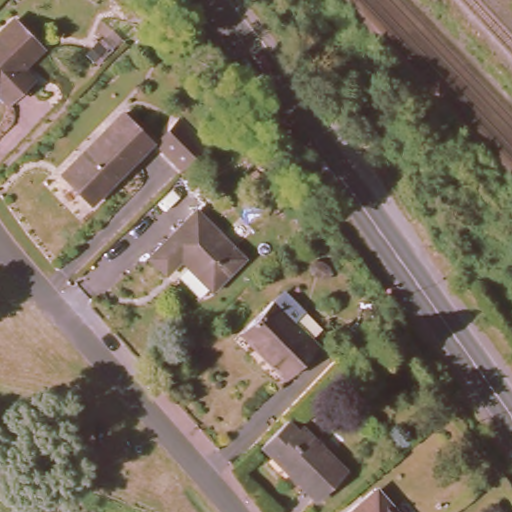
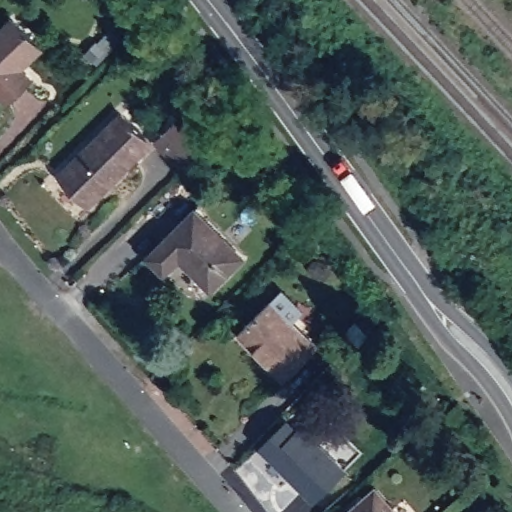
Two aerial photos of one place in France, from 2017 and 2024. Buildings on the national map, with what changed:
unchanged [(29,72),(9,92),(0,83),(0,23),(12,11),(40,40),(18,60),(29,72)]
unchanged [(91,205),(62,174),(124,113),(154,143),(91,205)]
unchanged [(160,140),(183,117),(210,146),(186,169),(160,140)]
unchanged [(146,250),(194,204),(242,254),(207,287),(176,254),(162,267),(146,250)]
unchanged [(275,289),(321,344),(287,371),(242,316),(275,289)]
unchanged [(310,497),(287,475),(290,471),(272,451),(268,455),(259,445),(282,423),(293,432),(299,427),(338,470),(310,497)]
unchanged [(402,512),(345,512),(375,484),(402,512)]

